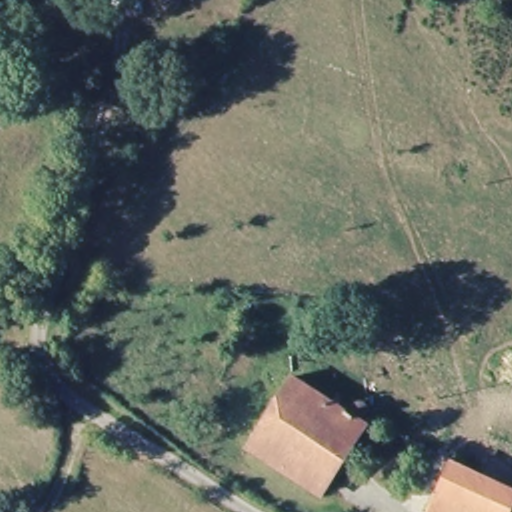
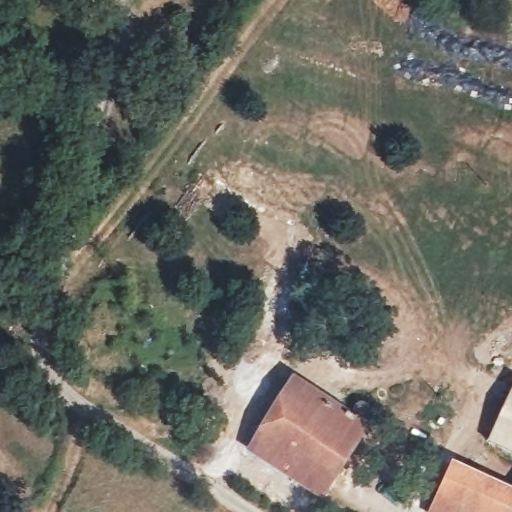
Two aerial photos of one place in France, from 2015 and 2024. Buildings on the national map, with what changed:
unchanged [(247,448),(297,382),(308,390),(329,402),(364,427),(317,498),(247,448)]
new [(489,441),(512,392),(512,453),(489,441)]
unchanged [(437,500),(452,466),(512,490),(512,499),(508,512),(433,512),(437,500)]
unchanged [(512,499),(512,512),(508,512),(512,499)]

